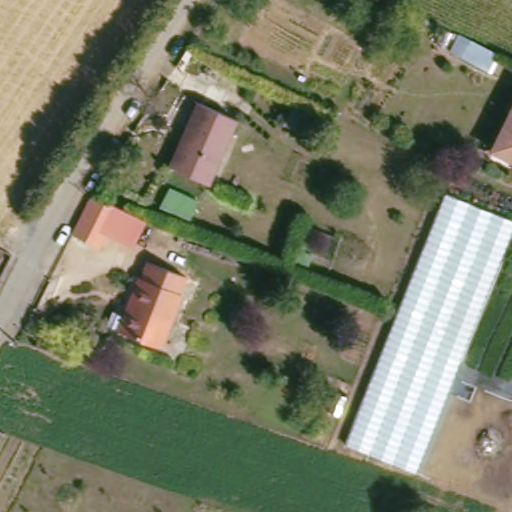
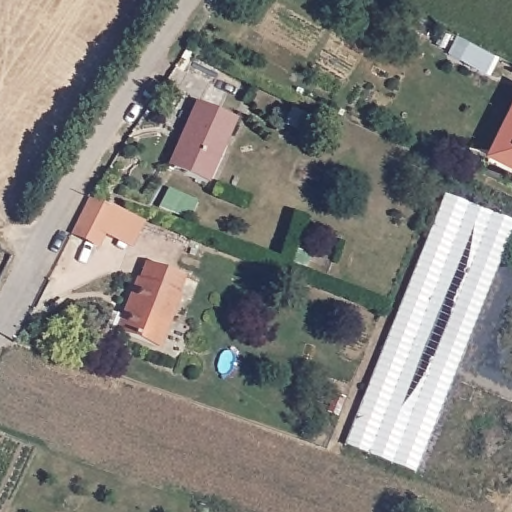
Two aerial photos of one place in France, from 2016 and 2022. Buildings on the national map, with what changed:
unchanged [(495,55),(487,73),(460,59),(461,56),(446,49),(453,35),(495,55)]
unchanged [(486,141),(512,90),(512,154),(486,141)]
unchanged [(182,135),(178,134),(190,98),(230,112),(207,179),(172,166),(182,135)]
unchanged [(512,220),(512,237),(417,473),(347,444),(447,193),(512,220)]
unchanged [(116,209),(97,245),(71,233),(89,198),(116,209)]
unchanged [(160,339),(117,322),(138,269),(141,269),(147,254),(185,269),(178,284),(181,285),(160,339)]

